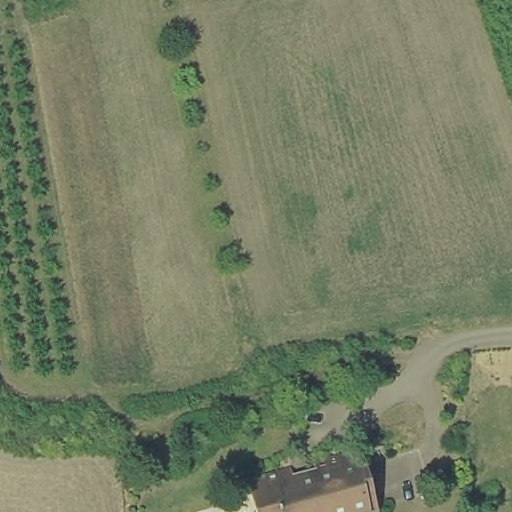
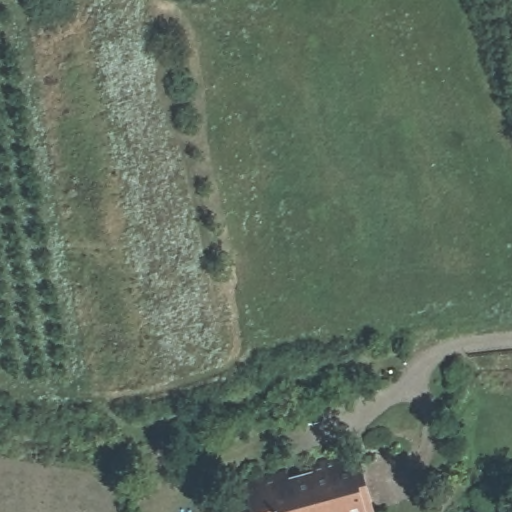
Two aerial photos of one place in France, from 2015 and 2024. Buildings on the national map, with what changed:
unchanged [(285,471),(287,481),(307,475),(305,465),(356,450),(371,507),(356,512),(250,512),(241,483),(285,471)]

